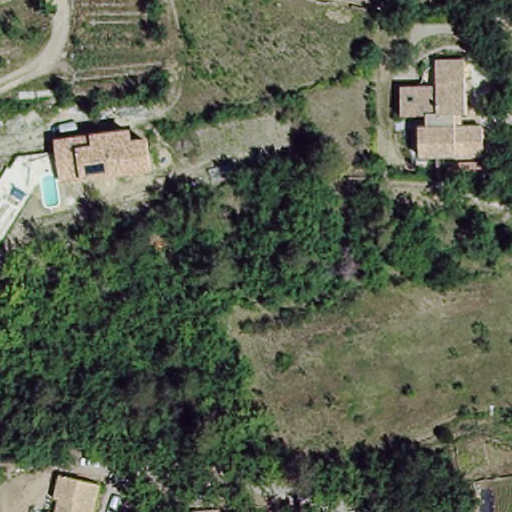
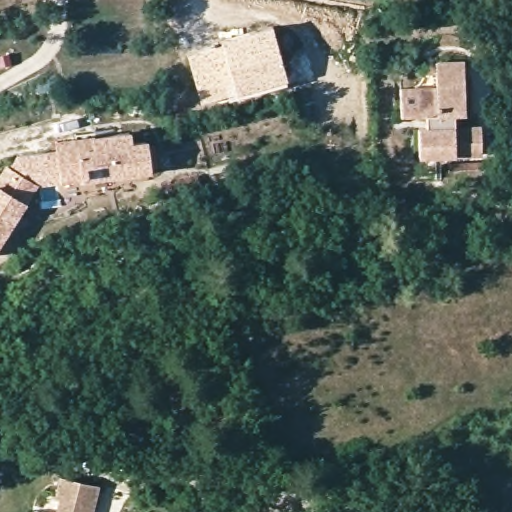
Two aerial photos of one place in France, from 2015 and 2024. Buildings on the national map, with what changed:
new [(220,42),(219,38),(273,24),(288,81),(200,104),(186,52),(220,42)]
unchanged [(455,118),(456,132),(483,130),(485,157),(421,161),(420,134),(427,134),(427,120),(402,122),(400,95),(436,93),(435,83),(435,67),(464,65),(465,82),(467,118),(455,118)]
unchanged [(93,135),(132,130),(133,141),(149,139),(153,172),(83,181),(62,184),(57,140),(93,135)]
new [(58,151),(62,184),(39,187),(0,246),(0,173),(6,163),(10,166),(16,155),(58,151)]
unchanged [(58,504),(66,483),(102,492),(97,512),(63,512),(64,506),(58,504)]

